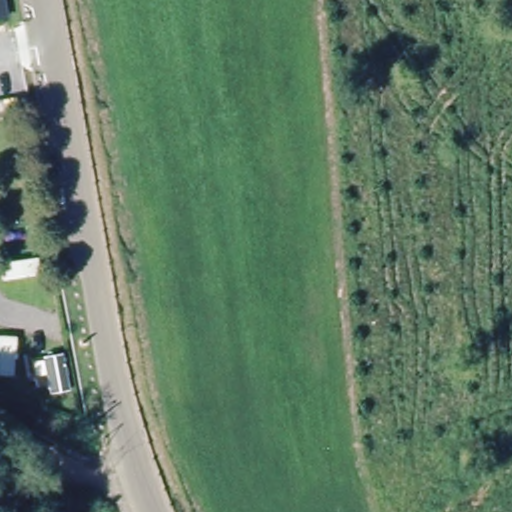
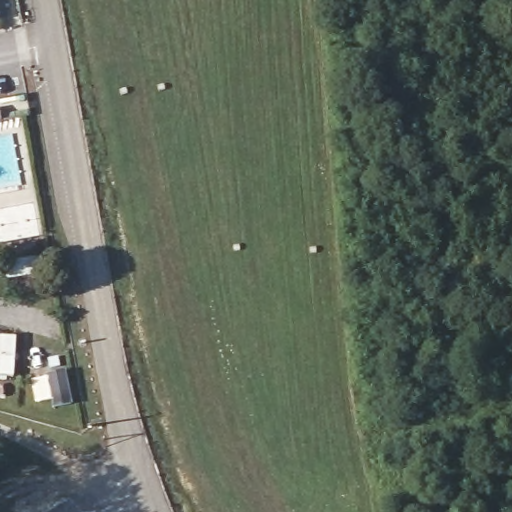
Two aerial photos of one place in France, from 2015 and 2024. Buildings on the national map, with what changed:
unchanged [(0,19),(0,0),(2,0),(5,18),(0,19)]

